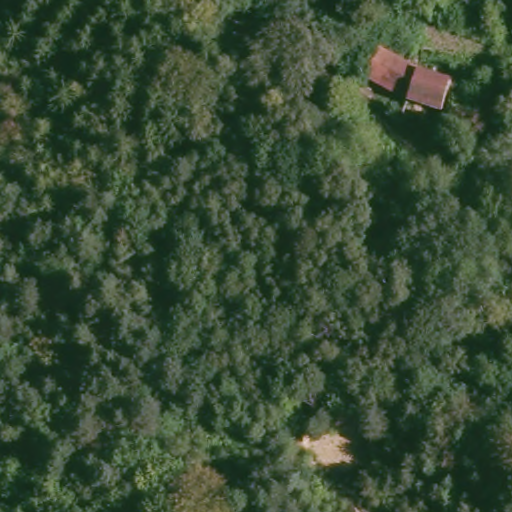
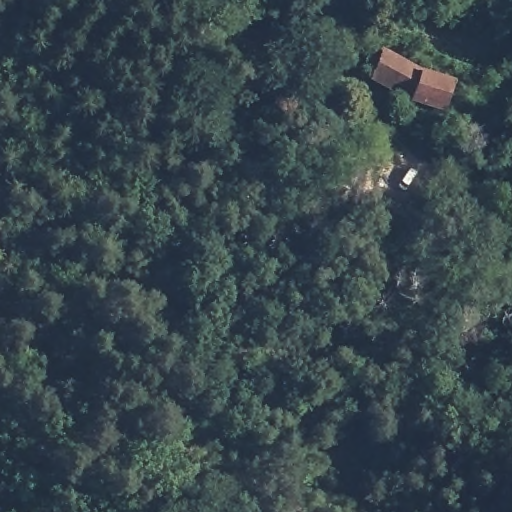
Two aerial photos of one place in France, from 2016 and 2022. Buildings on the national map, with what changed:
unchanged [(437,115),(403,102),(377,90),(385,62),(413,70),(445,82),(437,115)]

